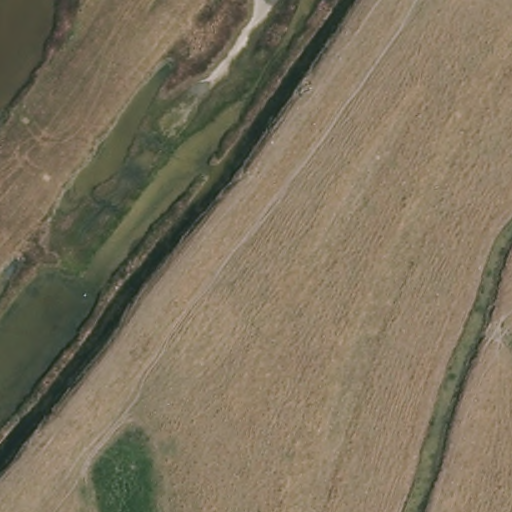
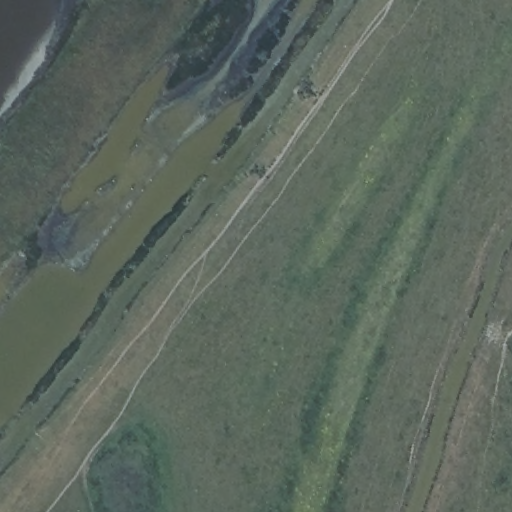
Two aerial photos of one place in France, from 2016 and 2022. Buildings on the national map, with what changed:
[]

